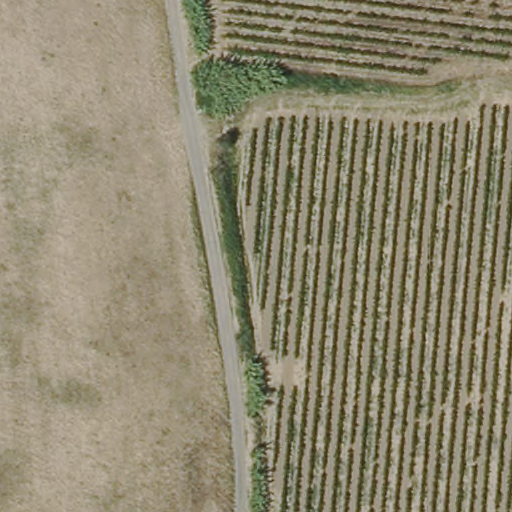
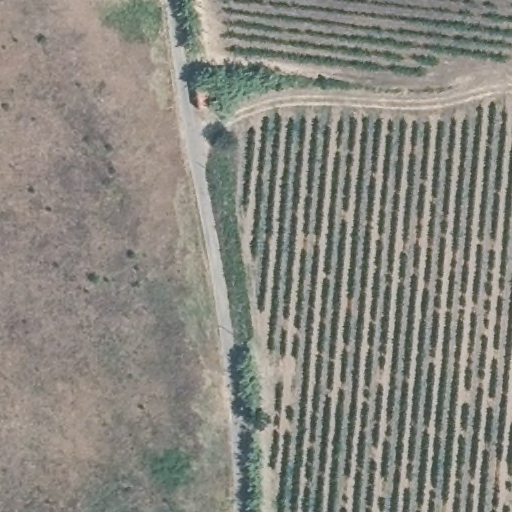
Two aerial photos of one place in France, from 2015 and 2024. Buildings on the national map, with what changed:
unchanged [(223,108),(205,108),(205,87),(223,87),(223,108)]

